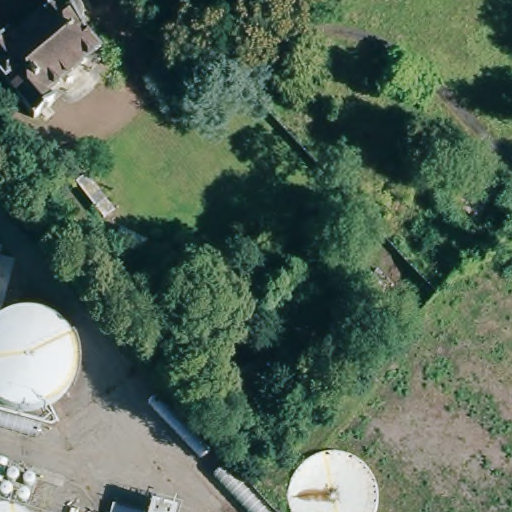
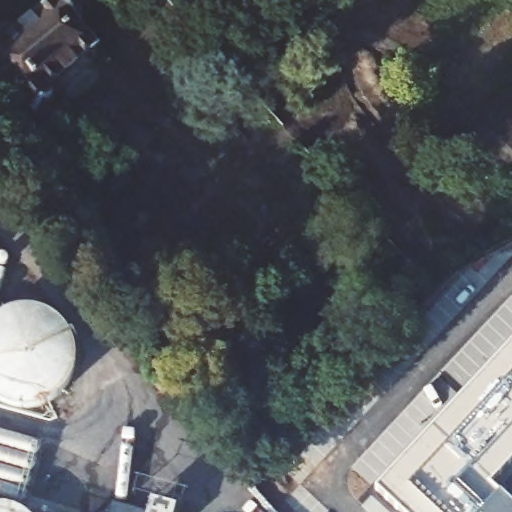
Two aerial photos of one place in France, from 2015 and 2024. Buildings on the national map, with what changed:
unchanged [(3,36),(48,0),(77,0),(79,2),(79,7),(80,11),(78,15),(75,17),(78,19),(76,20),(90,39),(39,81),(48,92),(29,108),(0,73),(0,33),(3,36)]
new [(377,490),(512,345),(512,463),(491,486),(502,495),(512,505),(512,512),(400,512),(377,490)]
new [(112,502),(148,511),(151,497),(178,504),(176,512),(109,512),(112,502)]

